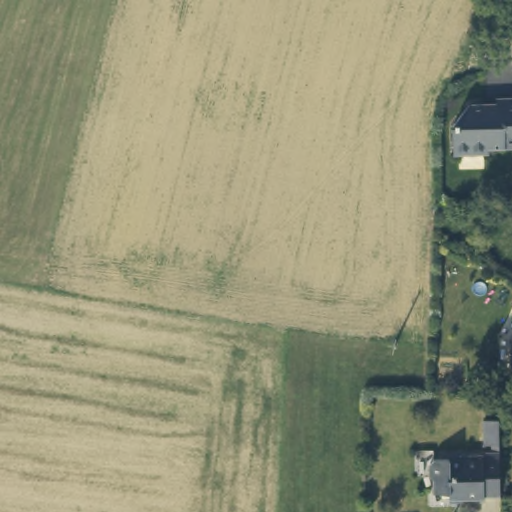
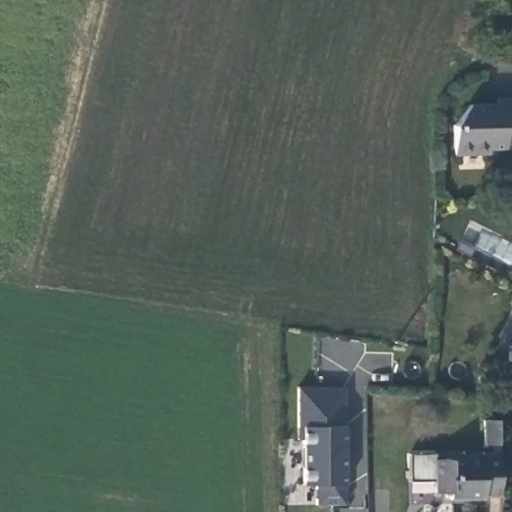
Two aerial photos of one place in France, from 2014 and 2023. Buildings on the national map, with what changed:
unchanged [(499,149),(499,156),(464,156),(465,129),(480,106),(497,106),(497,110),(507,110),(507,100),(512,100),(512,149),(499,149)]
unchanged [(511,367),(512,355),(512,367),(511,367)]
new [(314,486),(301,486),(301,437),(297,437),(298,384),(344,385),(345,506),(315,506),(314,486)]
unchanged [(495,422),(495,423),(496,447),(495,447),(480,447),(480,422),(495,422)]
unchanged [(483,498),(480,502),(447,502),(447,496),(431,496),(432,484),(428,480),(429,467),(433,462),(454,462),(461,457),(479,457),(482,455),(496,455),(496,498),(483,498)]

